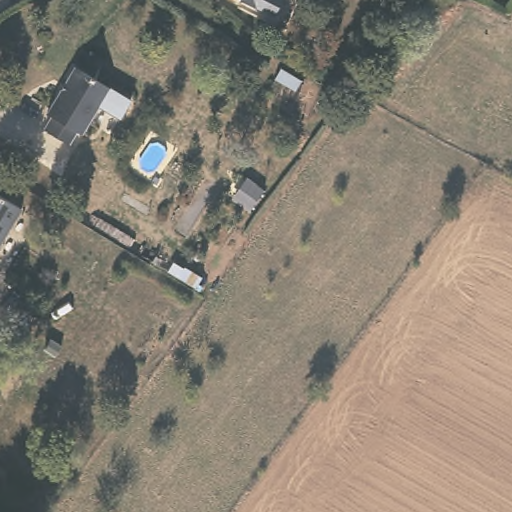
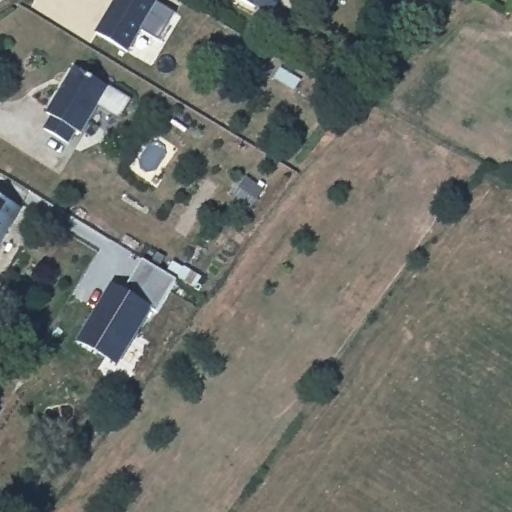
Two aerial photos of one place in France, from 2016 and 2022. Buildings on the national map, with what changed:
new [(115,0),(156,0),(158,1),(176,12),(160,40),(140,30),(129,52),(95,31),(115,0)]
unchanged [(271,10),(265,11),(255,5),(253,7),(238,0),(277,0),(271,10)]
unchanged [(111,89),(82,135),(76,132),(70,146),(45,130),(52,117),(48,114),(76,69),(111,89)]
unchanged [(22,207),(0,243),(0,194),(22,207)]
unchanged [(174,252),(201,267),(194,282),(169,268),(174,252)]
new [(124,292),(128,285),(144,260),(177,280),(157,313),(151,310),(118,365),(79,340),(112,285),(124,292)]

